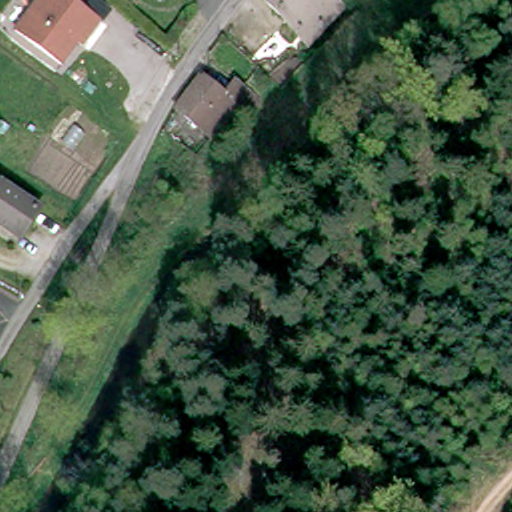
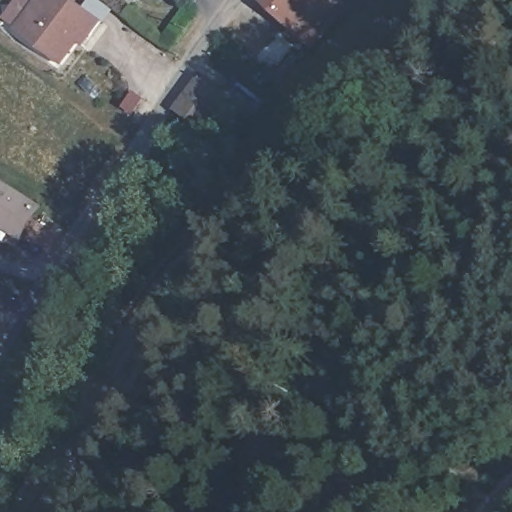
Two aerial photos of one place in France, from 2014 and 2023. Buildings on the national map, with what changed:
unchanged [(38,0),(73,0),(101,22),(82,46),(79,44),(63,65),(17,28),(38,0)]
unchanged [(308,55),(257,5),(261,0),(326,0),(345,19),(308,55)]
unchanged [(231,95),(241,82),(265,100),(255,113),(246,106),(221,139),(183,110),(187,101),(206,77),(231,95)]
unchanged [(0,219),(0,192),(4,185),(38,205),(23,232),(0,219)]

